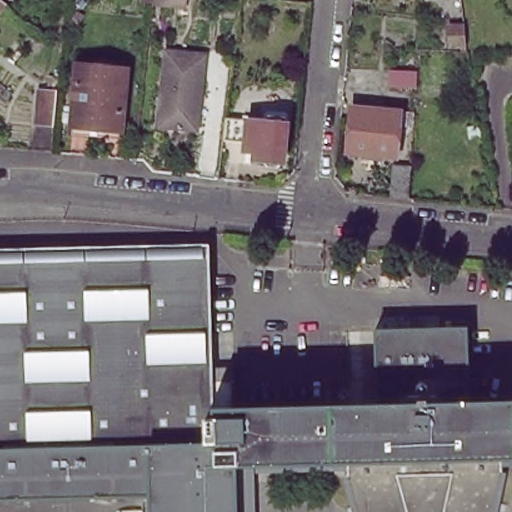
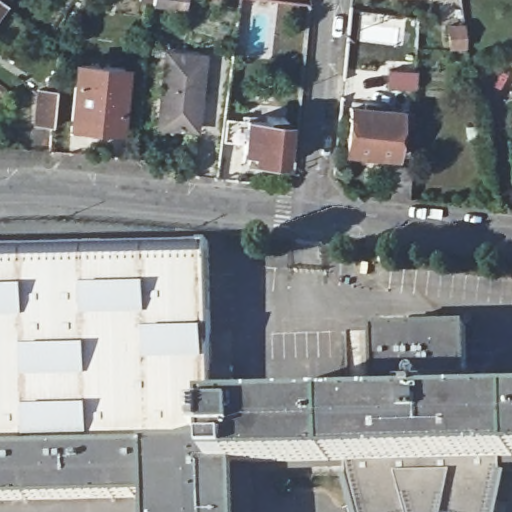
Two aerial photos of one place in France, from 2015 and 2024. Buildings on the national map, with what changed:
unchanged [(155,5),(155,0),(187,0),(186,8),(155,5)]
unchanged [(449,41),(448,22),(463,22),(467,45),(460,45),(459,40),(449,41)]
unchanged [(159,123),(166,51),(203,55),(196,126),(159,123)]
unchanged [(71,128),(77,58),(125,62),(118,133),(71,128)]
unchanged [(389,89),(390,73),(415,74),(415,89),(389,89)]
unchanged [(35,119),(37,86),(56,86),(52,121),(35,119)]
unchanged [(341,153),(345,108),(359,109),(360,102),(378,103),(377,110),(395,112),(408,113),(407,125),(393,124),(390,158),(341,153)]
unchanged [(287,161),(250,157),(252,141),(230,138),(231,131),(233,116),(255,119),(292,123),(287,161)]
unchanged [(405,166),(403,198),(384,196),(386,165),(405,166)]
unchanged [(205,239),(211,363),(232,362),(234,405),(209,402),(210,462),(235,465),(236,512),(147,512),(147,494),(0,497),(0,241),(205,239)]
unchanged [(467,322),(469,398),(376,401),(374,326),(467,322)]
unchanged [(376,401),(469,398),(512,397),(512,457),(500,457),(347,462),(251,464),(235,465),(210,462),(209,402),(234,405),(376,401)]
unchanged [(500,469),(491,512),(357,512),(347,473),(347,462),(500,457),(500,469)]
unchanged [(251,464),(252,512),(236,512),(235,465),(251,464)]

